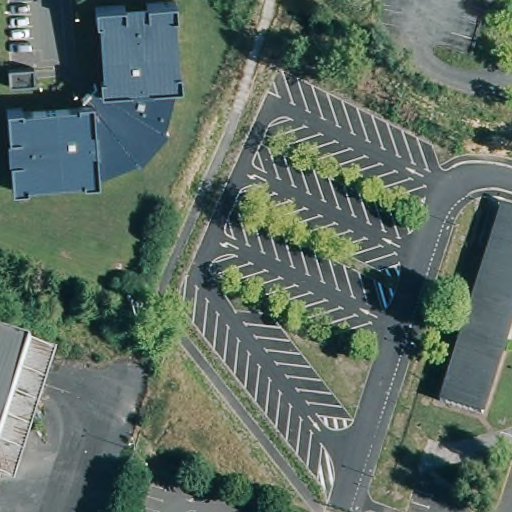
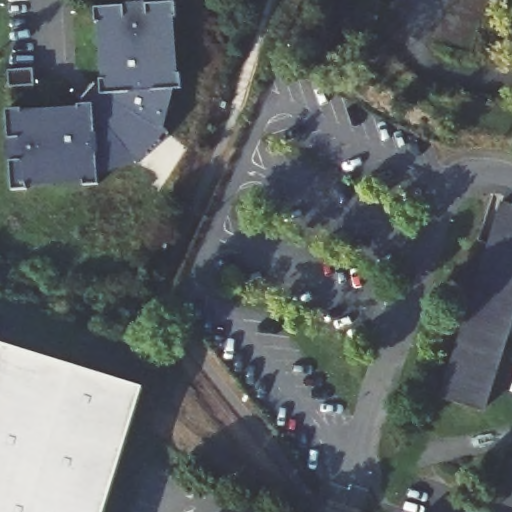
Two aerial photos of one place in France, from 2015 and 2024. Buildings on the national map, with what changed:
unchanged [(124,6),(124,2),(147,1),(147,5),(177,3),(177,18),(175,19),(179,76),(181,76),(182,90),(173,91),(165,133),(168,135),(136,168),(133,166),(97,180),(97,185),(83,186),(82,183),(27,189),(27,192),(12,193),(7,109),(24,108),(24,112),(75,108),(75,106),(82,106),(82,94),(99,93),(100,81),(101,81),(98,25),(96,25),(95,9),(124,6)]
unchanged [(512,206),(512,313),(481,412),(441,399),(504,204),(512,206)]
demolished [(28,340),(10,395),(21,399),(27,414),(12,423),(0,458),(0,331),(28,340)]
new [(145,388),(111,512),(0,512),(0,347),(145,388)]

